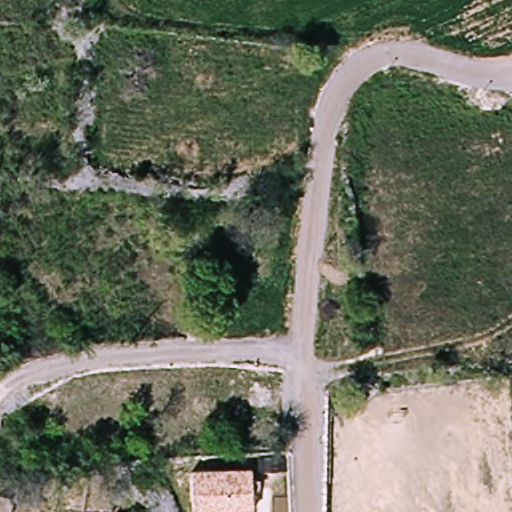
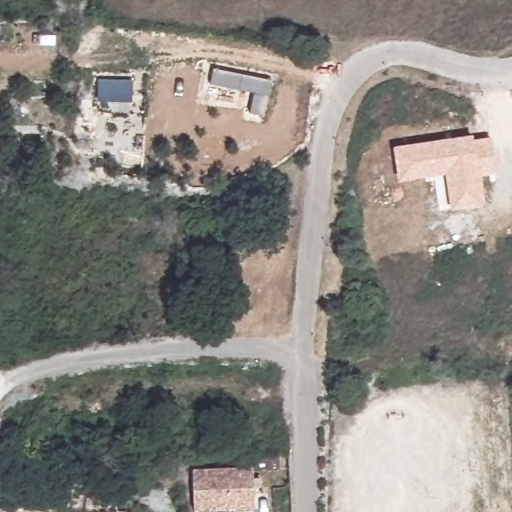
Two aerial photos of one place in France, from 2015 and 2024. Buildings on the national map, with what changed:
new [(250,113),(253,93),(211,84),(214,68),(273,80),(264,113),(250,113)]
new [(473,135),(474,141),(491,139),(496,173),(481,176),(486,206),(450,210),(445,174),(399,182),(392,147),(473,135)]
unchanged [(217,512),(195,512),(194,470),(251,469),(253,509),(217,512)]

